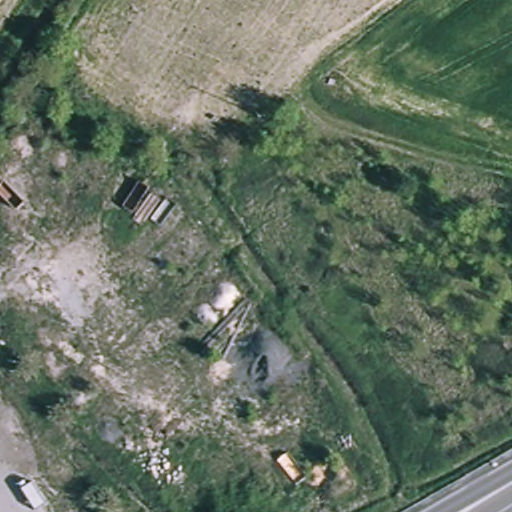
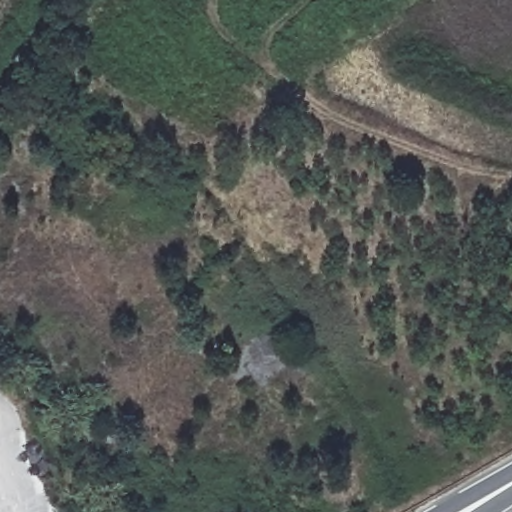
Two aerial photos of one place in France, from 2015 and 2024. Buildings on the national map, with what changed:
[]

